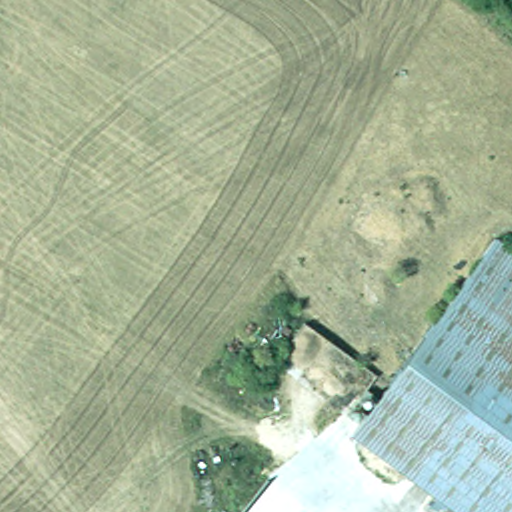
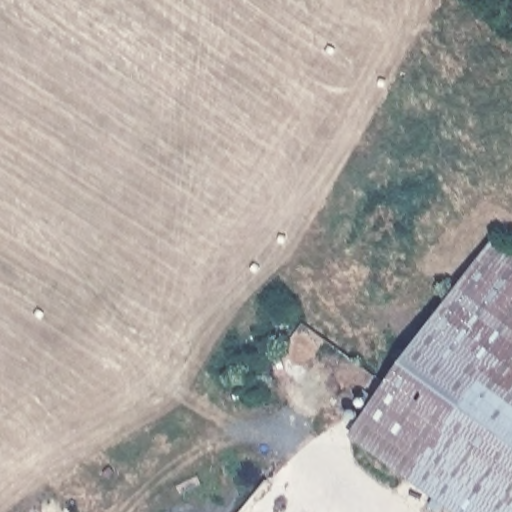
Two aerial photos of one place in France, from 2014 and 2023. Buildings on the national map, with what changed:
unchanged [(347,431),(491,235),(512,251),(512,512),(458,512),(347,431)]

